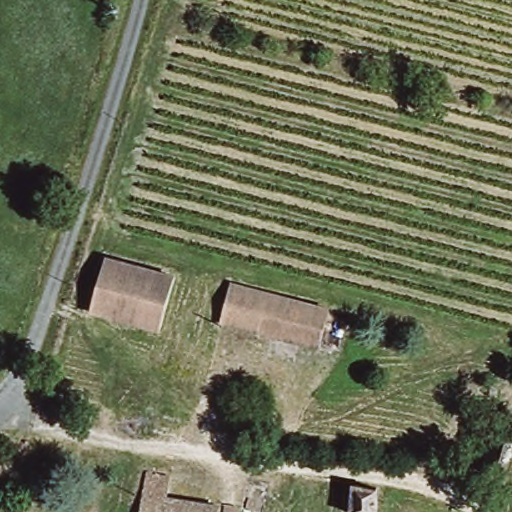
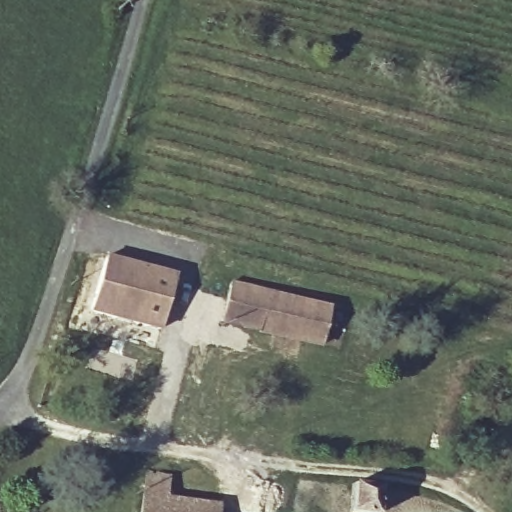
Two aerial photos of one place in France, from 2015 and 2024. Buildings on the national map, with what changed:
unchanged [(109,255),(176,272),(163,324),(97,308),(109,255)]
unchanged [(236,285),(332,310),(323,344),(233,322),(227,320),(236,285)]
unchanged [(361,512),(347,511),(335,510),(339,481),(367,485),(361,512)]
unchanged [(146,492),(221,502),(219,512),(143,512),(146,492)]

